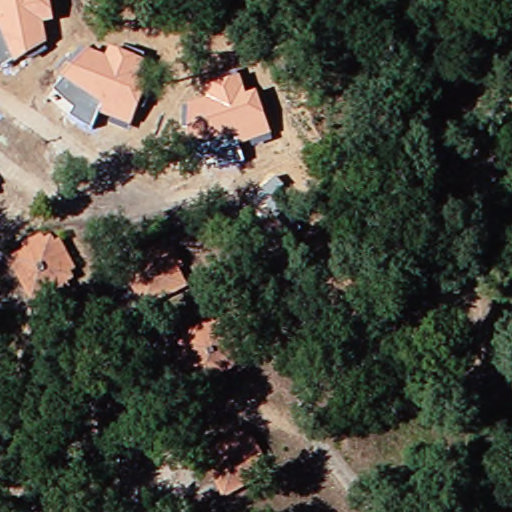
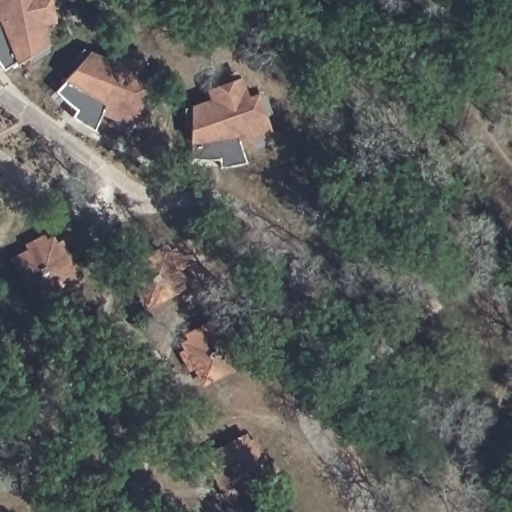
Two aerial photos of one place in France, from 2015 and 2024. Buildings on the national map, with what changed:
unchanged [(0,0),(50,0),(54,21),(44,23),(48,44),(15,63),(14,59),(1,67),(0,65),(0,0)]
unchanged [(71,115),(75,107),(55,89),(66,79),(62,76),(87,49),(106,56),(109,47),(146,61),(139,79),(149,83),(131,126),(99,113),(93,128),(71,115)]
unchanged [(219,165),(217,154),(193,158),(188,145),(189,105),(208,98),(204,87),(241,74),(247,94),(257,90),(272,134),(240,145),(245,162),(219,165)]
unchanged [(25,305),(0,261),(0,258),(41,228),(68,276),(25,305)]
unchanged [(183,283),(144,317),(116,274),(155,239),(183,283)]
unchanged [(241,354),(199,389),(171,345),(214,308),(241,354)]
unchanged [(280,472),(242,500),(212,455),(248,423),(280,472)]

